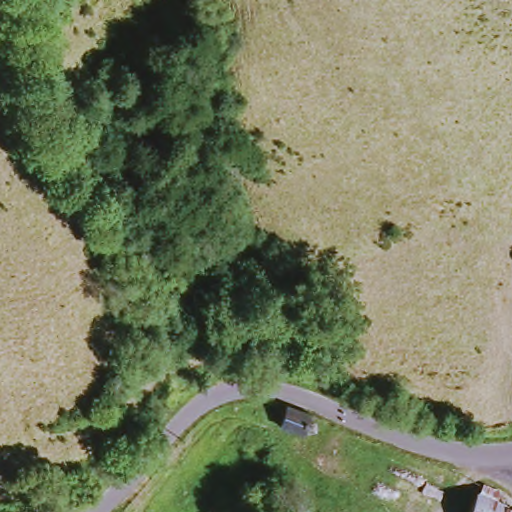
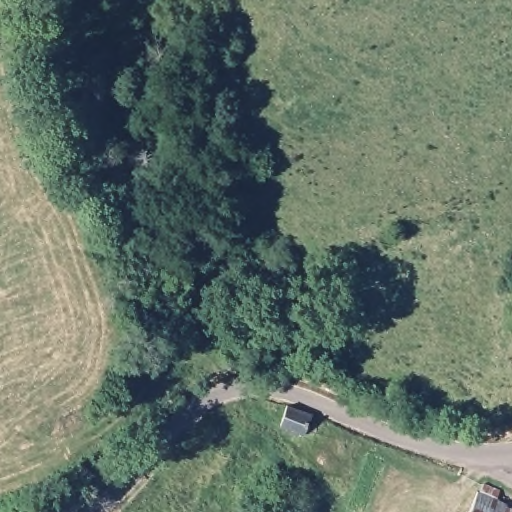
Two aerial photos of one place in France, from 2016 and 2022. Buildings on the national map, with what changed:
unchanged [(480,482),(491,488),(489,498),(512,507),(512,512),(466,512),(475,480),(480,482)]

